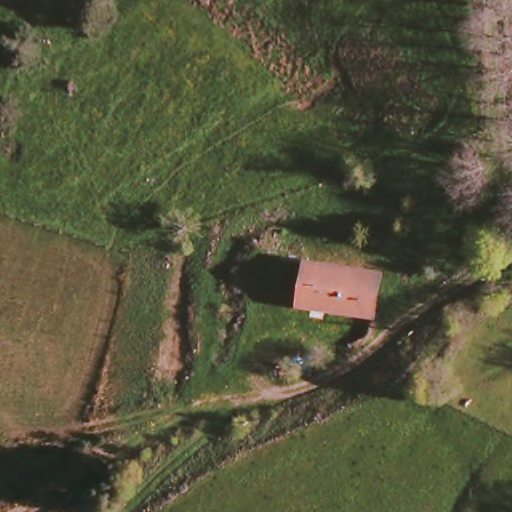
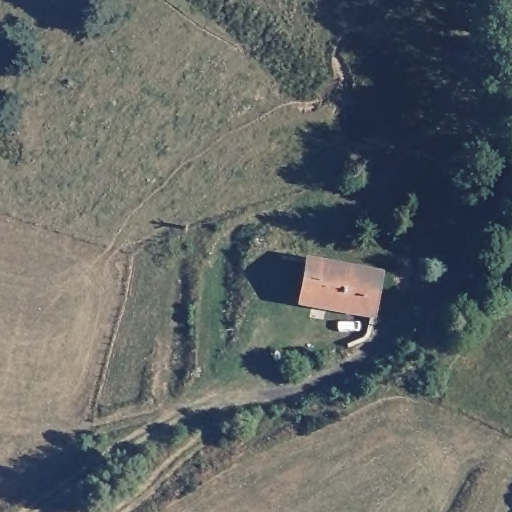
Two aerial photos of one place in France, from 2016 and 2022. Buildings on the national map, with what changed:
unchanged [(389,279),(379,327),(343,319),(291,305),(301,257),(389,279)]

